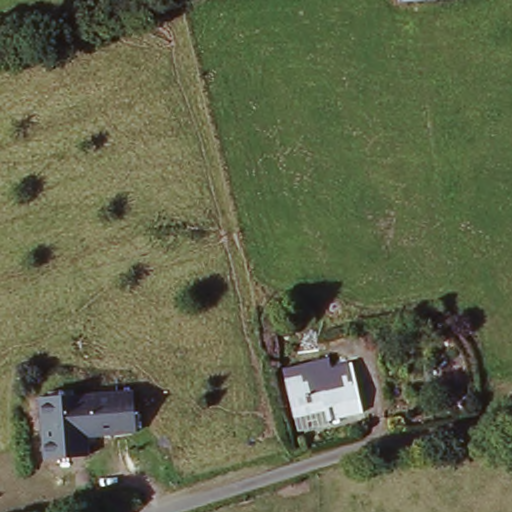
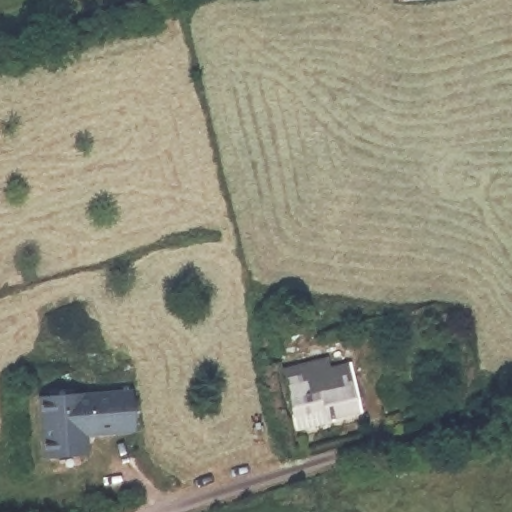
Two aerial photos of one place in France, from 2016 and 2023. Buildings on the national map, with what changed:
unchanged [(353,365),(365,415),(298,430),(288,382),(353,365)]
unchanged [(81,391),(82,393),(131,389),(135,431),(85,433),(87,453),(44,456),(39,394),(81,391)]

